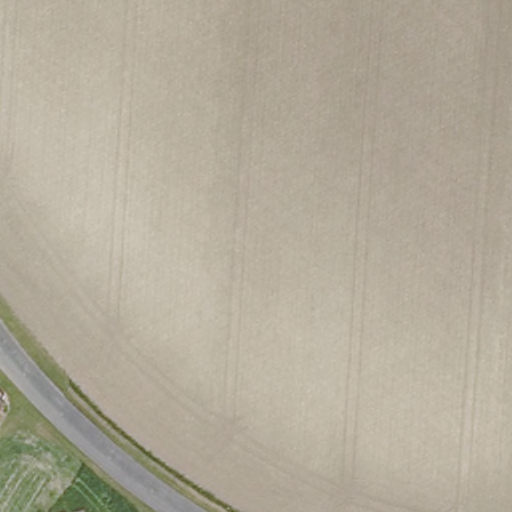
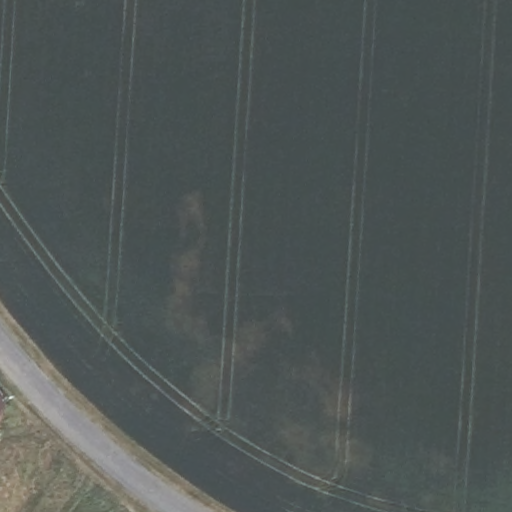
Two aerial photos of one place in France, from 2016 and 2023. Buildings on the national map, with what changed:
unchanged [(13,389),(0,411),(0,376),(13,389)]

